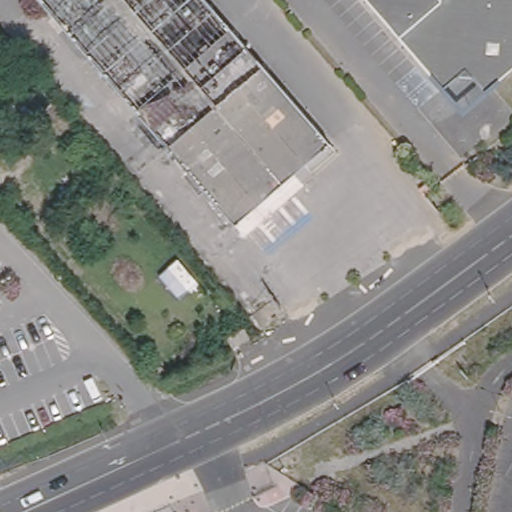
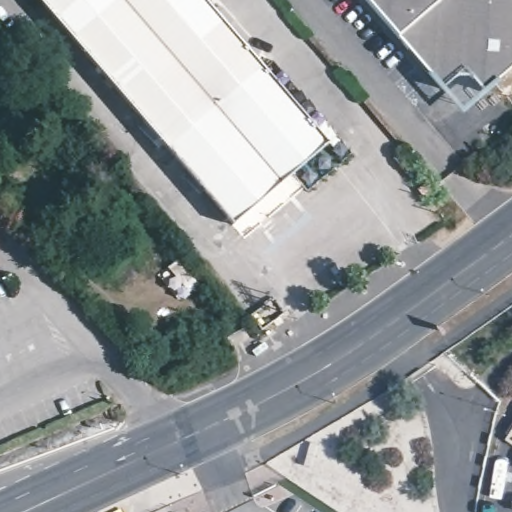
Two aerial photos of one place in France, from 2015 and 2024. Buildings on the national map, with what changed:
unchanged [(231,219),(80,44),(41,0),(206,0),(288,96),(324,140),(231,219)]
unchanged [(365,0),(512,0),(512,64),(482,89),(460,109),(440,87),(365,0)]

